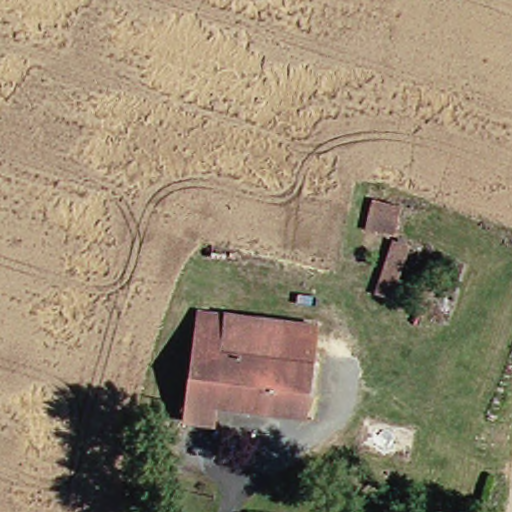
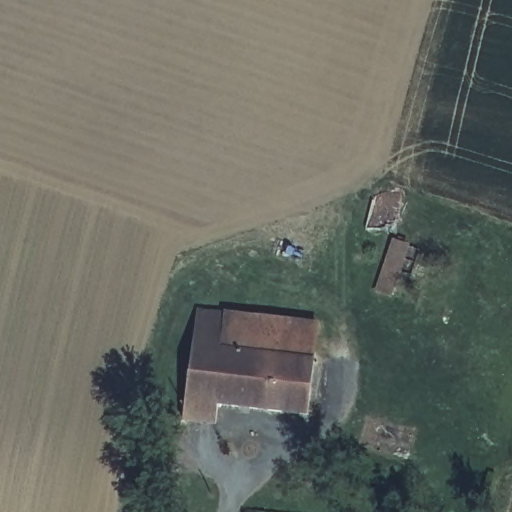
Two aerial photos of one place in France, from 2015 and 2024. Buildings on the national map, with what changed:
unchanged [(391,225),(361,223),(363,193),(393,195),(391,225)]
unchanged [(388,286),(374,281),(389,233),(404,237),(388,286)]
unchanged [(311,412),(223,399),(221,419),(189,414),(204,304),(232,308),(228,343),(319,354),(311,412)]
unchanged [(232,308),(323,320),(319,354),(228,343),(232,308)]

